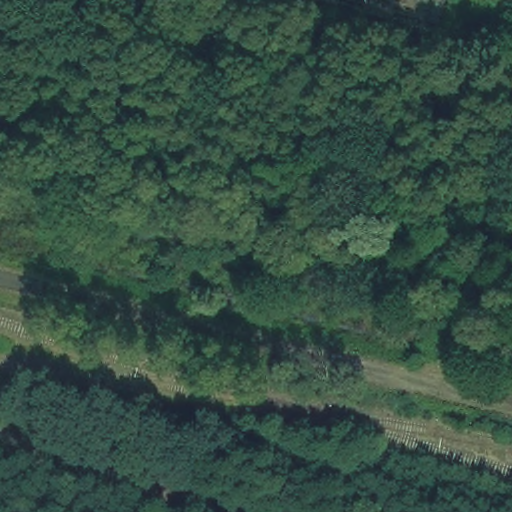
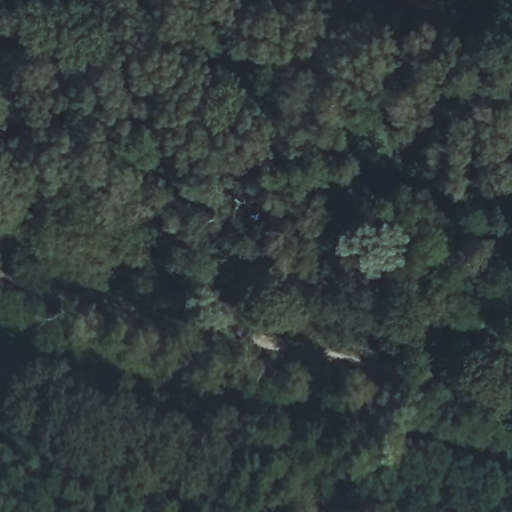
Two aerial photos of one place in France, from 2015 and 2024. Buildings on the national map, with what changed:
unchanged [(329,0),(450,0),(440,34),(329,0)]

